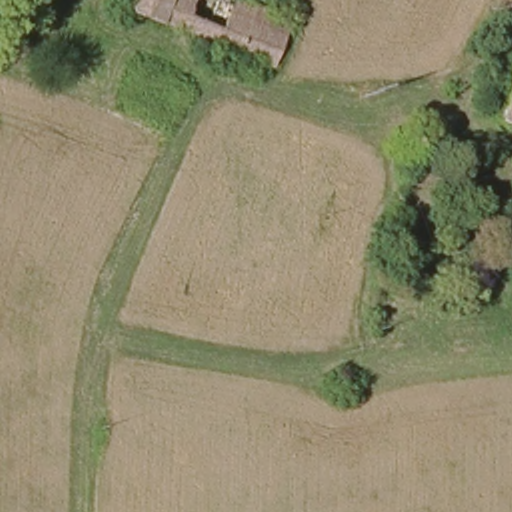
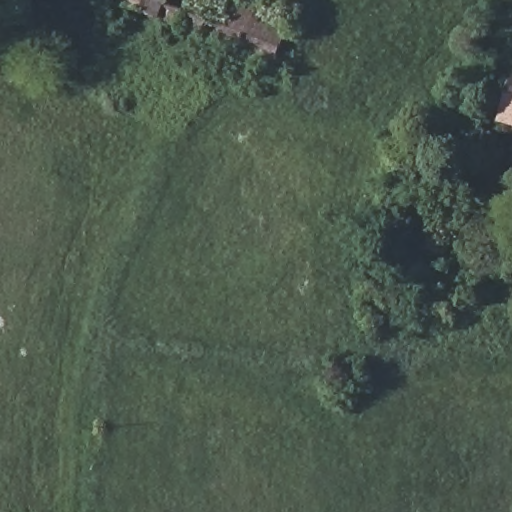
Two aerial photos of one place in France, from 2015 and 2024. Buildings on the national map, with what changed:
unchanged [(158,23),(125,10),(127,5),(130,0),(167,0),(158,23)]
unchanged [(167,0),(191,0),(180,31),(158,23),(167,0)]
unchanged [(191,0),(233,0),(291,24),(273,68),(180,31),(191,0)]
unchanged [(504,129),(512,100),(512,131),(504,129)]

